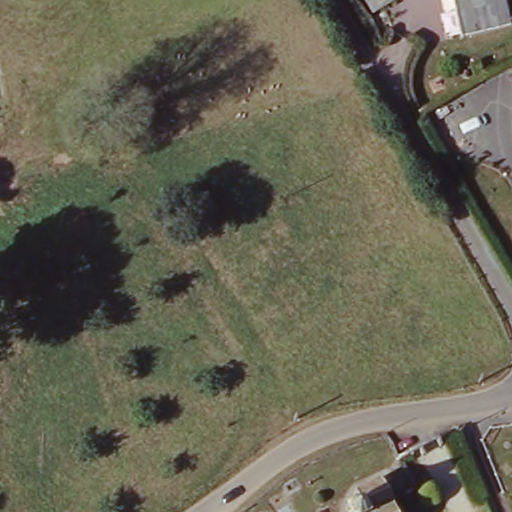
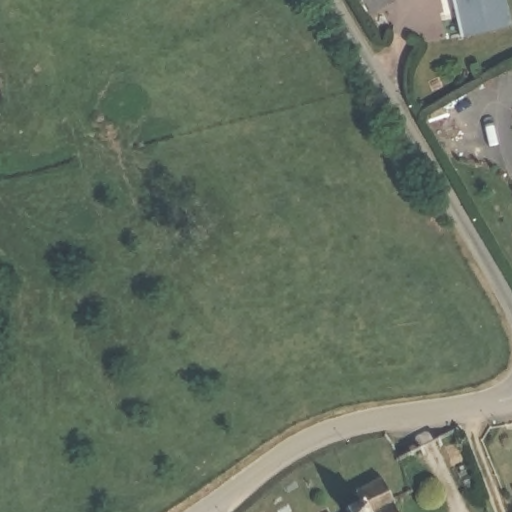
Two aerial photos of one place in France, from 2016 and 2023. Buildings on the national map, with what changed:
unchanged [(372,12),(365,0),(392,0),(372,12)]
unchanged [(510,18),(462,27),(457,0),(507,0),(510,18)]
unchanged [(360,495),(386,480),(396,501),(403,512),(346,512),(362,503),(360,495)]

